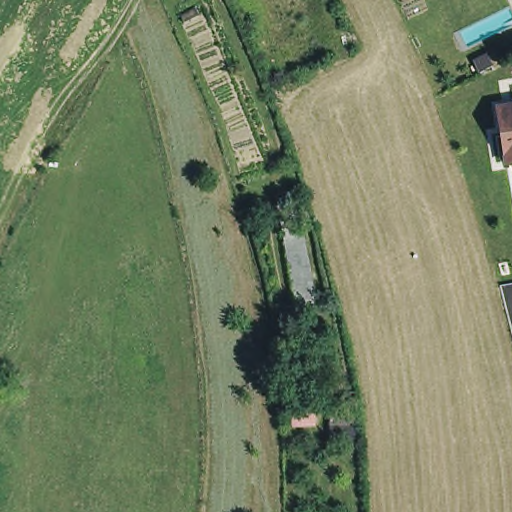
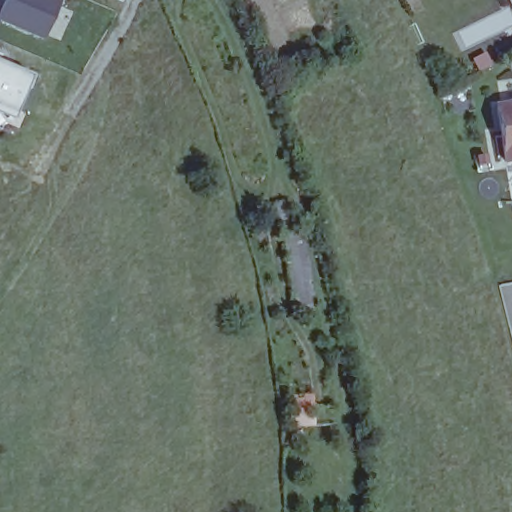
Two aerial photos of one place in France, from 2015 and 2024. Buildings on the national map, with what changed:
new [(0,24),(0,7),(3,0),(63,0),(44,42),(0,24)]
new [(34,74),(15,119),(0,112),(0,59),(34,74)]
unchanged [(490,110),(512,107),(512,163),(499,165),(490,110)]
unchanged [(293,309),(281,229),(302,226),(316,307),(293,309)]

